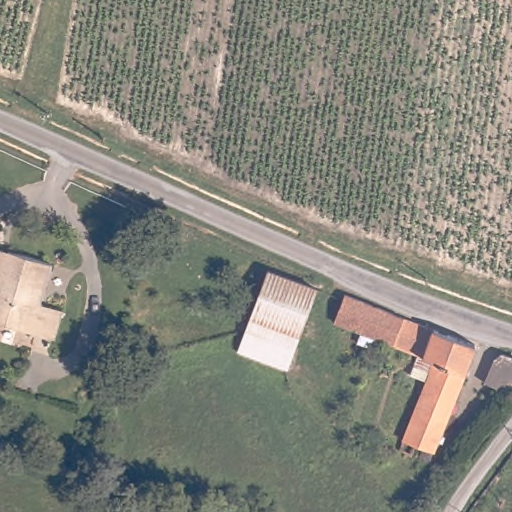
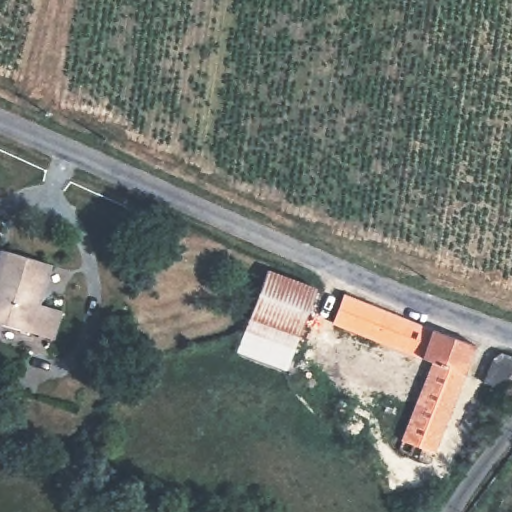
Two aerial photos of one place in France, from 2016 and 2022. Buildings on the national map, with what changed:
unchanged [(11,250),(52,262),(41,300),(64,308),(55,336),(0,319),(0,286),(11,250)]
unchanged [(267,283),(314,303),(291,359),(245,339),(267,283)]
unchanged [(350,292),(435,327),(426,353),(420,352),(387,339),(339,320),(350,292)]
unchanged [(416,362),(420,352),(426,353),(435,327),(477,342),(466,371),(436,359),(433,368),(416,362)]
unchanged [(502,356),(512,358),(512,394),(482,384),(490,364),(502,356)]
unchanged [(433,368),(436,359),(466,371),(433,459),(402,449),(433,368)]

